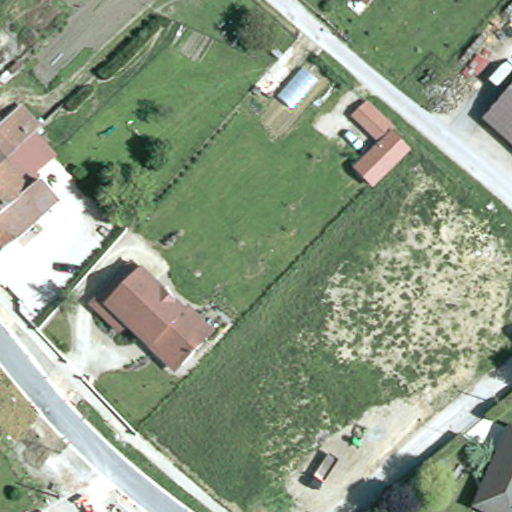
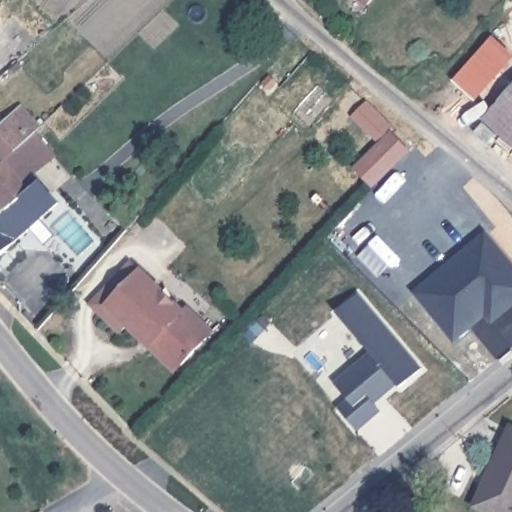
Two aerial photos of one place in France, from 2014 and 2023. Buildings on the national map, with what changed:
unchanged [(355,0),(375,0),(368,10),(355,0)]
new [(475,102),(452,82),(493,36),(512,53),(512,60),(475,102)]
unchanged [(0,79),(0,78),(1,78),(0,79)]
unchanged [(486,118),(512,89),(512,134),(508,139),(486,118)]
new [(396,129),(393,133),(410,152),(372,188),(351,167),(377,143),(351,117),(367,100),(396,129)]
unchanged [(6,160),(5,161),(0,166),(0,130),(26,107),(43,126),(6,160)]
unchanged [(508,139),(512,134),(512,143),(508,139)]
unchanged [(45,180),(43,181),(62,201),(0,259),(0,166),(5,161),(24,181),(35,170),(45,180)]
new [(492,326),(485,316),(454,343),(412,292),(486,230),(512,262),(512,309),(492,326)]
unchanged [(143,269),(216,330),(174,369),(128,329),(120,339),(90,307),(129,268),(143,269)]
new [(423,369),(399,388),(376,406),(381,413),(357,431),(337,407),(347,399),(333,381),(369,352),(335,312),(360,293),(423,369)]
demolished [(15,431),(0,410),(0,382),(28,423),(15,431)]
unchanged [(477,506),(512,431),(512,512),(490,512),(477,506)]

